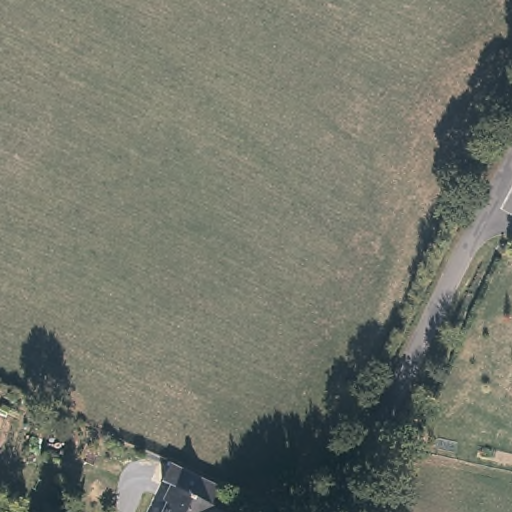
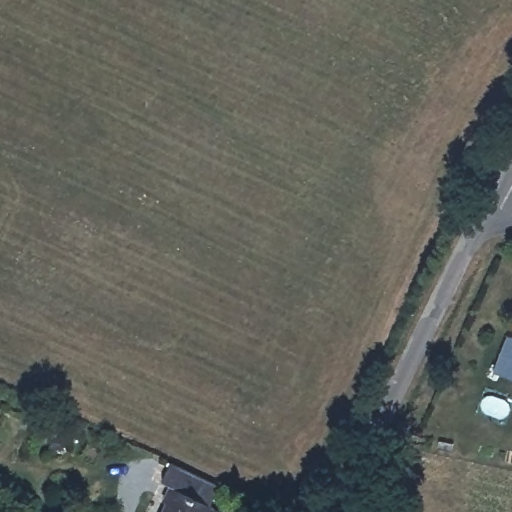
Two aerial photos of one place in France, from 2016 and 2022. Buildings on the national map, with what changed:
new [(508,334),(512,336),(512,378),(493,371),(508,334)]
unchanged [(223,487),(215,506),(226,512),(164,512),(168,504),(165,502),(172,487),(164,482),(173,465),(223,487)]

